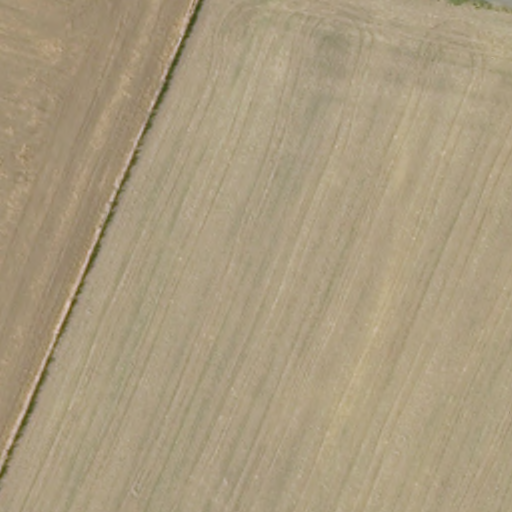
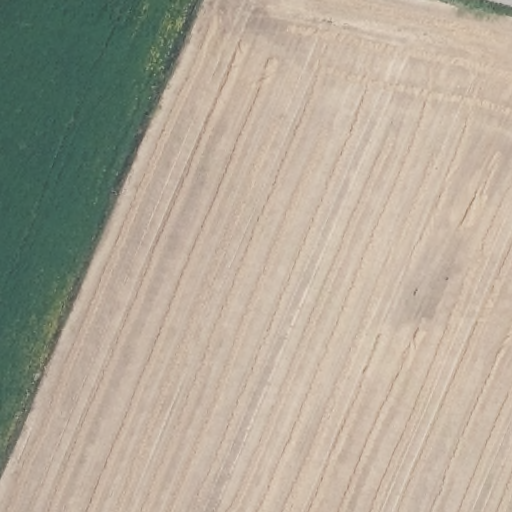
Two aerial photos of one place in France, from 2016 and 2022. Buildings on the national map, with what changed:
[]

